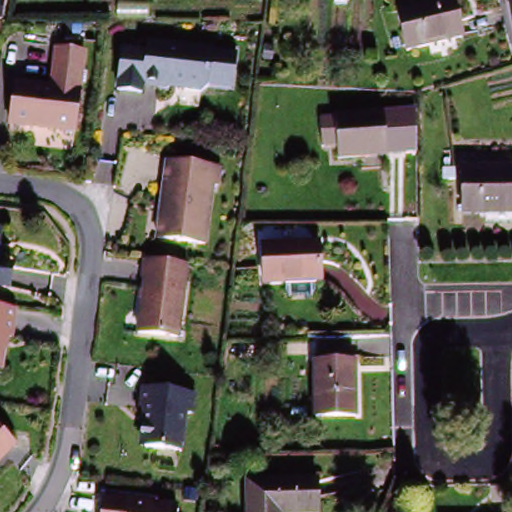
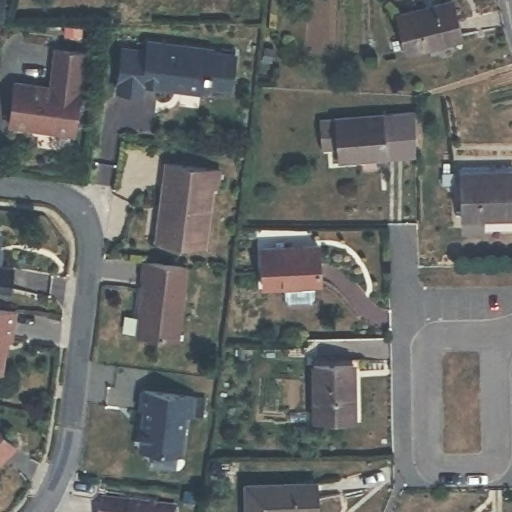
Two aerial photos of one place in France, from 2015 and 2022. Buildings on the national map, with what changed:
unchanged [(407,55),(398,15),(452,4),(462,43),(407,55)]
unchanged [(233,56),(230,91),(210,89),(200,94),(197,94),(141,93),(140,100),(117,97),(119,57),(141,58),(142,49),(211,51),(213,55),(233,56)]
unchanged [(15,84),(56,89),(57,80),(51,80),(55,51),(83,54),(74,133),(10,126),(15,84)]
unchanged [(337,164),(337,154),(318,154),(318,117),(411,111),(416,157),(337,164)]
unchanged [(211,191),(208,191),(200,245),(154,238),(165,164),(214,171),(211,191)]
unchanged [(512,222),(462,222),(461,174),(512,174),(512,222)]
unchanged [(8,291),(0,290),(0,247),(5,248),(2,266),(11,267),(8,291)]
unchanged [(282,289),(262,289),(261,250),(319,249),(320,289),(312,288),(310,303),(284,302),(282,289)]
unchanged [(150,281),(148,280),(150,262),(191,267),(183,339),(143,334),(150,281)]
unchanged [(5,337),(0,367),(0,307),(15,309),(12,338),(5,337)]
unchanged [(310,370),(350,369),(351,421),(312,422),(311,390),(310,370)]
unchanged [(145,390),(195,397),(191,420),(183,419),(178,458),(137,452),(144,408),(141,407),(145,390)]
unchanged [(19,451),(0,469),(0,430),(19,451)]
unchanged [(306,489),(306,512),(248,512),(248,490),(306,489)]
unchanged [(103,512),(105,501),(177,512),(103,512)]

